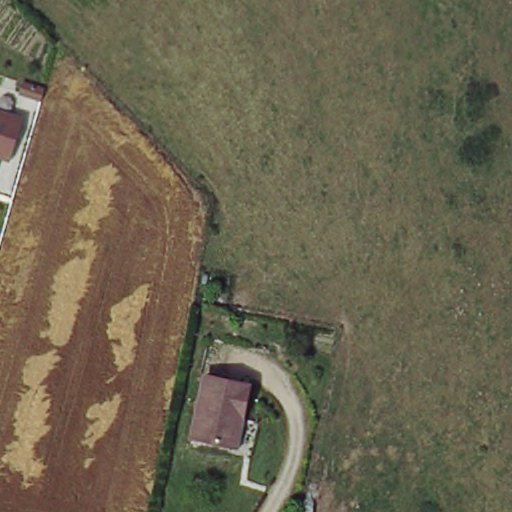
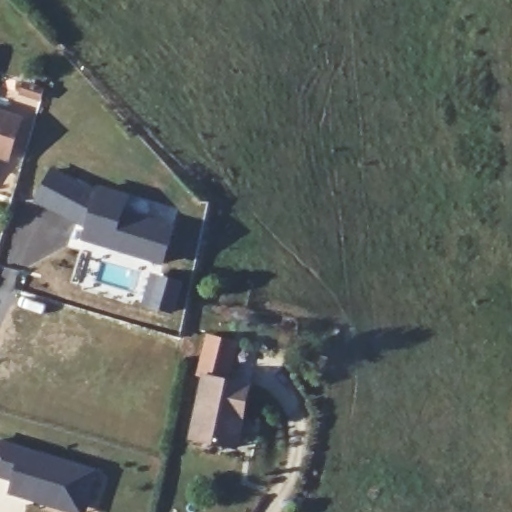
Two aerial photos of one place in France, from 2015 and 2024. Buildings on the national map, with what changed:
unchanged [(20,140),(14,160),(2,156),(0,164),(0,113),(25,120),(20,140)]
new [(163,267),(82,241),(84,229),(34,201),(51,168),(95,194),(97,185),(130,194),(125,209),(177,226),(163,267)]
unchanged [(229,443),(192,436),(206,373),(250,383),(242,416),(235,445),(229,443)]
new [(12,482),(0,478),(0,439),(97,472),(85,512),(65,512),(7,495),(12,482)]

